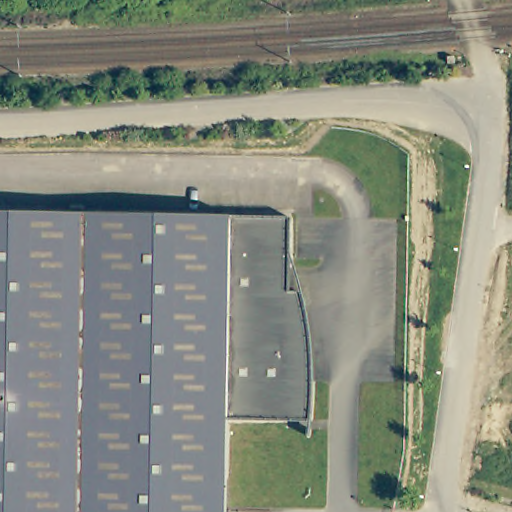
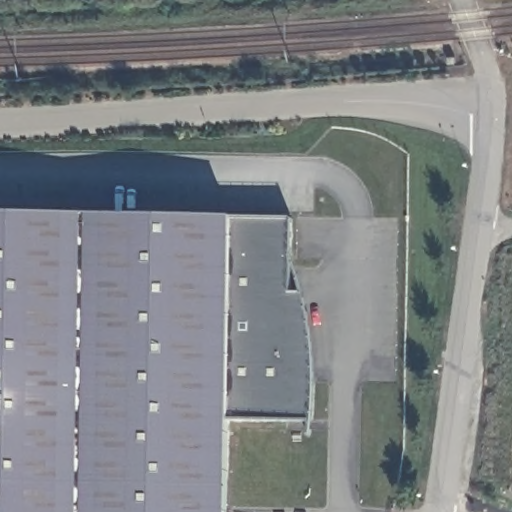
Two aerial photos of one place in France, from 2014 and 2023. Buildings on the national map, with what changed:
unchanged [(227,512),(0,512),(0,212),(233,217),(229,421),(227,512)]
unchanged [(233,217),(295,219),(292,287),(302,288),(311,328),(314,347),(316,365),(316,383),(315,398),(314,420),(229,421),(233,217)]

